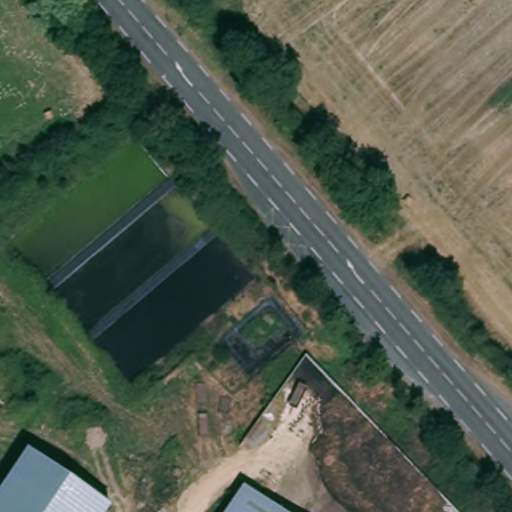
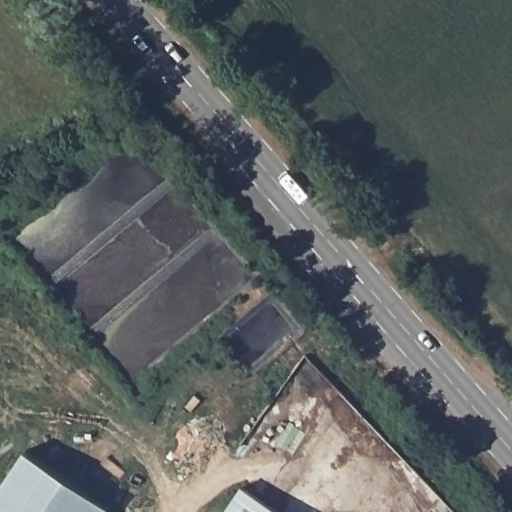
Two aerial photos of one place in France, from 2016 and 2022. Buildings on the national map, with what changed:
unchanged [(0,487),(25,448),(109,507),(106,512),(0,512),(0,487)]
unchanged [(242,491),(273,512),(229,512),(242,491)]

